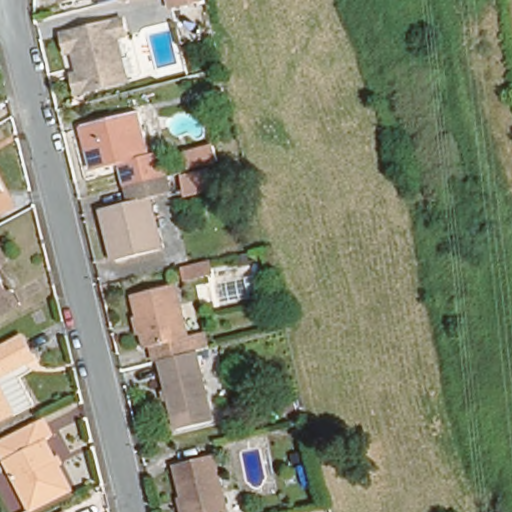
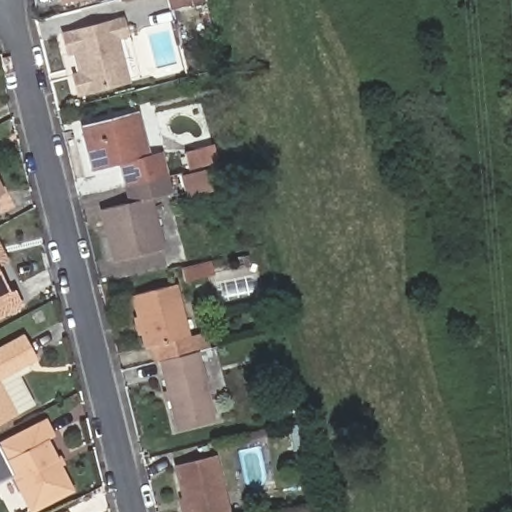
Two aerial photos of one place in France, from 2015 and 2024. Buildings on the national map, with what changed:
unchanged [(61,8),(59,0),(88,0),(61,8)]
unchanged [(176,2),(176,0),(185,0),(176,2)]
unchanged [(132,74),(88,84),(79,38),(122,28),(132,74)]
unchanged [(111,189),(105,167),(93,169),(82,123),(138,109),(149,157),(164,154),(169,175),(111,189)]
unchanged [(219,165),(194,171),(189,152),(215,146),(219,165)]
unchanged [(173,195),(150,201),(161,251),(115,261),(103,212),(116,209),(111,189),(169,175),(173,195)]
unchanged [(207,197),(192,201),(185,181),(203,179),(207,197)]
unchanged [(11,263),(0,268),(0,246),(4,244),(11,263)]
unchanged [(22,309),(0,319),(0,280),(8,297),(15,294),(22,309)]
unchanged [(131,297),(174,288),(185,339),(194,337),(197,355),(160,364),(155,365),(152,349),(143,351),(140,335),(138,324),(131,297)]
unchanged [(0,377),(0,348),(23,337),(34,360),(0,377)]
unchanged [(214,424),(178,432),(160,364),(197,355),(214,424)]
unchanged [(0,417),(0,387),(11,412),(0,417)]
unchanged [(0,446),(43,426),(51,444),(45,446),(68,493),(30,511),(0,451),(0,446)]
unchanged [(181,512),(172,468),(211,460),(223,512),(181,512)]

